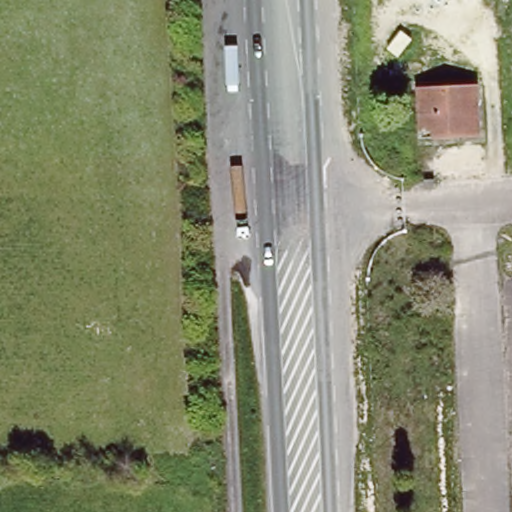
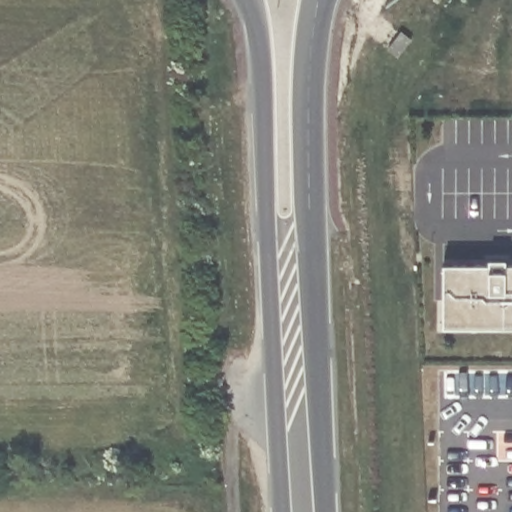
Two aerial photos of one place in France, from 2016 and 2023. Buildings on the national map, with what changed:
demolished [(412,0),(432,0),(412,1),(412,0)]
demolished [(481,84),(483,133),(422,136),(420,86),(481,84)]
new [(444,264),(487,263),(487,258),(507,258),(507,263),(512,263),(512,326),(445,326),(444,264)]

